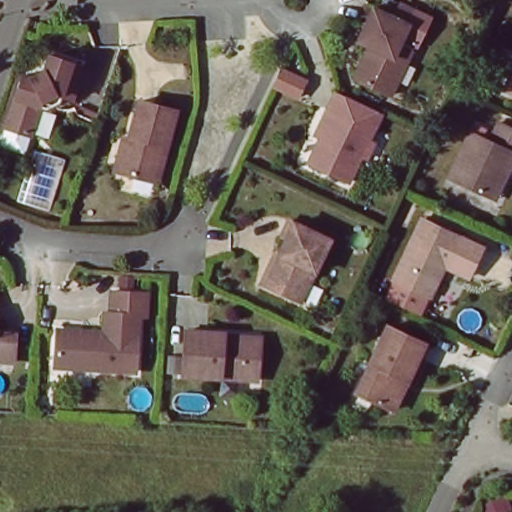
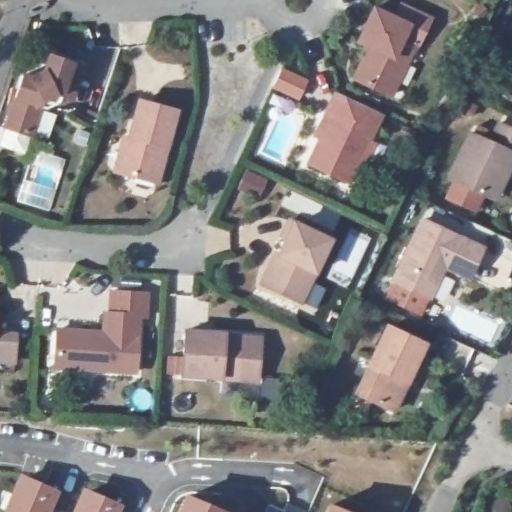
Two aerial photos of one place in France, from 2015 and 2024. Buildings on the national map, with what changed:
unchanged [(369,2),(404,19),(394,40),(408,46),(387,90),(350,72),(365,41),(354,35),(369,2)]
unchanged [(512,47),(512,92),(495,84),(512,47)]
unchanged [(73,61),(63,93),(46,87),(33,94),(21,129),(0,122),(0,108),(13,69),(21,72),(34,65),(39,49),(73,61)]
new [(273,86),(281,68),(308,81),(299,98),(273,86)]
unchanged [(326,87),(336,92),(371,108),(359,135),(364,138),(358,153),(352,150),(339,176),(299,157),(311,131),(307,129),(326,87)]
unchanged [(134,94),(172,105),(153,176),(110,164),(119,131),(124,132),(134,94)]
unchanged [(494,118),(512,126),(512,149),(491,193),(444,172),(466,127),(486,137),(494,118)]
unchanged [(417,213),(479,242),(464,272),(441,261),(427,291),(424,290),(416,306),(384,291),(392,275),(389,274),(417,213)]
unchanged [(284,216),(321,233),(292,296),(252,278),(266,247),(269,249),(284,216)]
unchanged [(131,366),(50,361),(53,323),(98,325),(100,307),(105,307),(106,286),(143,288),(141,311),(134,310),(131,366)]
unchanged [(378,320),(416,338),(384,405),(347,387),(378,320)]
unchanged [(176,324),(214,327),(214,329),(251,332),(248,375),(173,369),(176,324)]
new [(61,490),(52,512),(0,512),(19,472),(61,490)]
new [(81,486),(123,504),(120,512),(70,512),(81,486)]
new [(184,493),(209,502),(228,512),(176,512),(184,493)]
unchanged [(482,504),(501,496),(507,512),(485,512),(482,504)]
new [(268,502),(283,509),(286,501),(308,512),(263,512),(268,502)]
new [(327,502),(351,512),(322,512),(327,502)]

